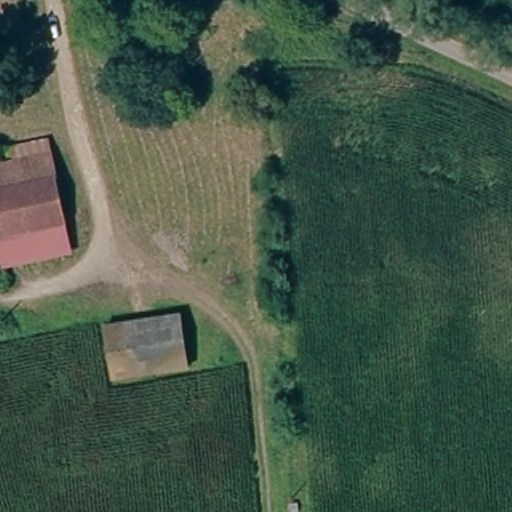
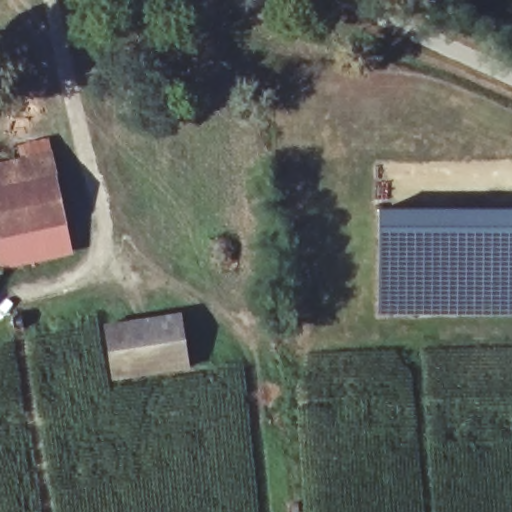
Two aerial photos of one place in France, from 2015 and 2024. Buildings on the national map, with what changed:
unchanged [(53,181),(0,195),(0,157),(45,146),(53,181)]
unchanged [(53,181),(62,225),(0,239),(0,195),(53,181)]
new [(512,211),(512,312),(381,313),(379,212),(512,211)]
unchanged [(62,225),(68,249),(0,265),(0,239),(62,225)]
unchanged [(179,313),(187,367),(115,380),(106,325),(179,313)]

